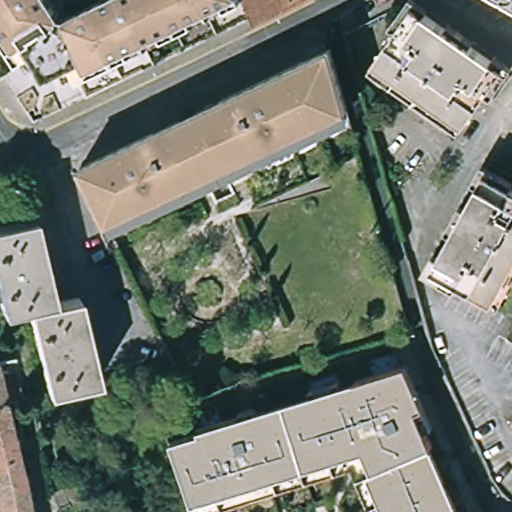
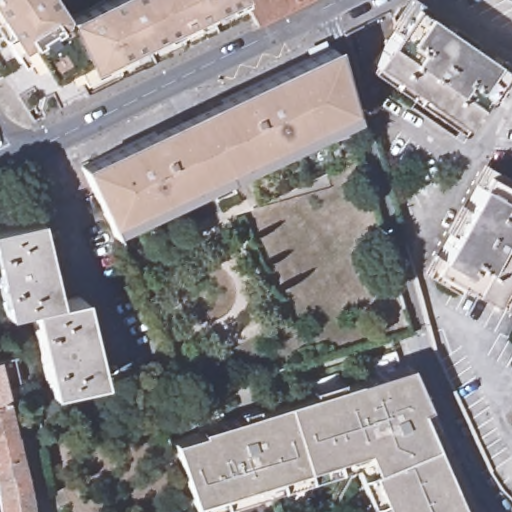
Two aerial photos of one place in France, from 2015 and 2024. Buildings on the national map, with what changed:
unchanged [(38,121),(0,63),(0,0),(54,0),(63,14),(92,0),(249,0),(257,16),(38,121)]
unchanged [(296,7),(276,17),(268,21),(261,25),(257,16),(249,0),(312,0),(311,0),(296,7)]
unchanged [(508,0),(512,0),(512,2),(508,0)]
unchanged [(371,65),(412,6),(501,67),(461,127),(371,65)]
unchanged [(81,168),(330,47),(346,109),(349,118),(313,135),(300,141),(285,149),(251,165),(185,197),(147,215),(111,232),(108,225),(81,168)]
unchanged [(491,301),(430,265),(485,170),(512,185),(512,265),(491,301)]
unchanged [(6,315),(0,290),(0,227),(35,219),(55,303),(28,310),(6,315)]
unchanged [(78,298),(98,381),(88,384),(49,393),(48,393),(28,310),(55,303),(78,298)]
unchanged [(186,485),(178,460),(171,441),(200,432),(199,429),(256,412),(258,415),(358,385),(357,382),(400,369),(436,446),(433,448),(462,512),(375,512),(355,468),(209,512),(195,512),(186,485)]
unchanged [(0,405),(0,373),(10,402),(0,405)]
unchanged [(11,413),(13,425),(16,435),(19,447),(22,458),(27,478),(30,495),(32,512),(3,512),(0,489),(0,405),(10,402),(11,413)]
unchanged [(510,426),(512,422),(512,428),(510,426)]
unchanged [(475,511),(475,512),(472,512),(475,511)]

